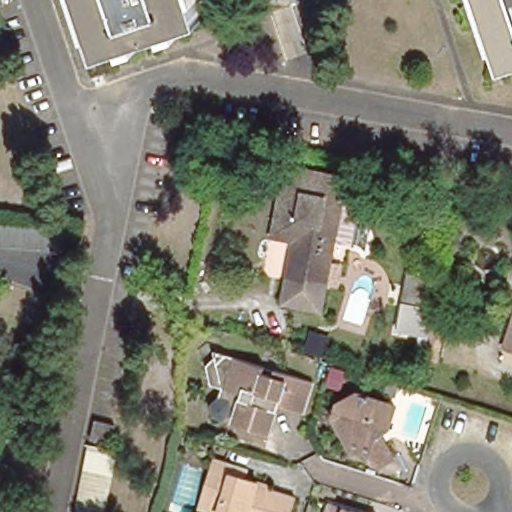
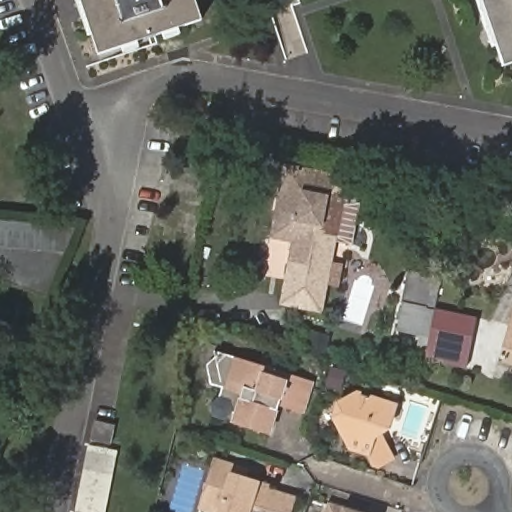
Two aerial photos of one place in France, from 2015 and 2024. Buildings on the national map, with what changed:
unchanged [(80,0),(192,0),(198,17),(97,50),(80,0)]
unchanged [(512,65),(500,68),(478,0),(512,0),(512,65)]
unchanged [(342,182),(360,184),(350,244),(334,242),(323,316),(278,306),(286,242),(268,238),(285,171),(342,182)]
unchanged [(0,241),(0,214),(10,214),(44,217),(77,220),(67,246),(0,241)]
unchanged [(420,353),(424,338),(409,335),(413,311),(398,307),(404,282),(434,289),(429,309),(444,314),(434,356),(420,353)]
new [(477,317),(466,368),(432,363),(434,356),(444,314),(429,309),(429,307),(477,317)]
unchanged [(512,334),(512,341),(510,340),(512,334)]
unchanged [(256,434),(225,425),(227,414),(224,414),(213,421),(200,416),(194,404),(202,394),(202,384),(192,381),(193,360),(204,355),(204,350),(255,365),(253,372),(262,375),(264,368),(303,380),(295,411),(270,404),(261,435),(256,434)]
unchanged [(391,404),(384,424),(379,423),(375,434),(370,433),(382,457),(370,463),(364,461),(360,451),(344,445),(331,422),(327,415),(333,402),(352,392),(391,404)]
unchanged [(88,423),(106,427),(104,446),(84,442),(88,423)]
unchanged [(69,512),(82,449),(109,455),(98,512),(69,512)]
unchanged [(281,494),(275,512),(215,512),(187,503),(202,455),(215,459),(232,464),(230,473),(257,482),(255,485),(281,494)]
unchanged [(354,507),(365,510),(365,512),(310,512),(315,494),(354,507)]

